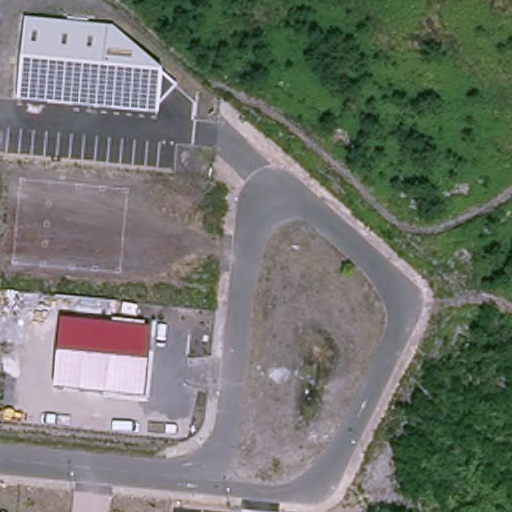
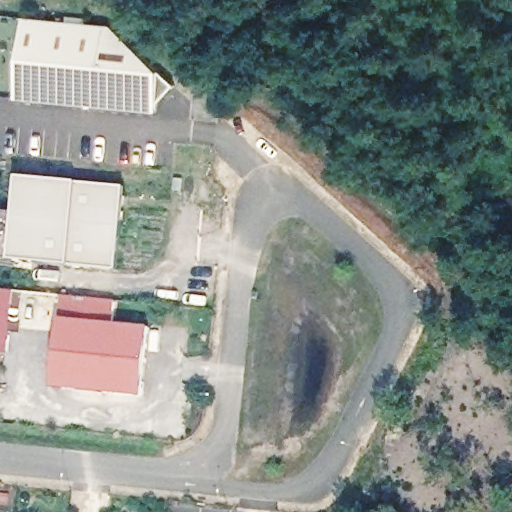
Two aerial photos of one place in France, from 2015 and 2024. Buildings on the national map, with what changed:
unchanged [(18,100),(25,19),(114,26),(162,73),(176,87),(158,103),(158,114),(18,100)]
new [(20,175),(127,186),(119,270),(12,258),(20,175)]
new [(9,355),(0,354),(0,290),(15,292),(9,355)]
unchanged [(145,398),(53,388),(60,318),(150,328),(145,398)]

